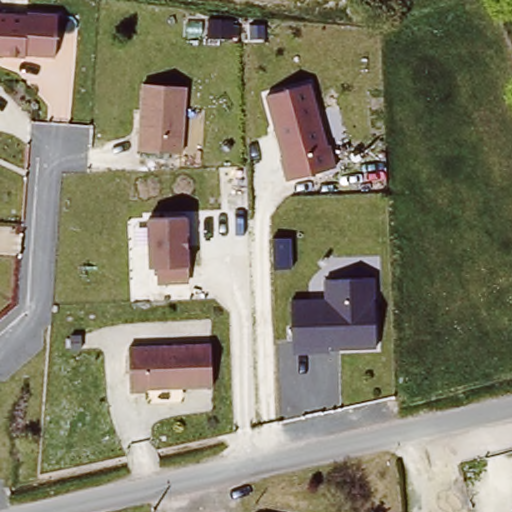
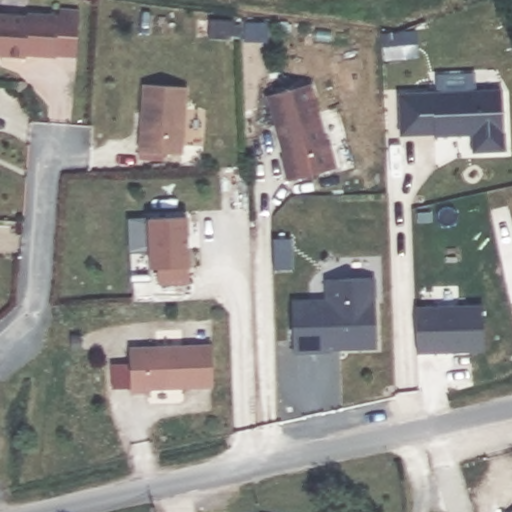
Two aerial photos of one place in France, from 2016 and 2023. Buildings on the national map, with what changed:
unchanged [(26,9),(57,12),(55,54),(27,53),(27,55),(0,53),(0,11),(25,13),(26,9)]
new [(409,49),(410,54),(382,55),(380,31),(425,29),(425,46),(409,49)]
unchanged [(185,85),(181,154),(137,149),(141,81),(185,85)]
unchanged [(313,83),(337,168),(282,182),(276,156),(280,155),(264,93),(313,83)]
new [(471,152),(470,135),(398,135),(395,93),(502,89),(505,150),(471,152)]
unchanged [(188,213),(190,280),(160,281),(158,265),(148,265),(147,216),(188,213)]
unchanged [(325,298),(325,278),(373,277),(376,347),(330,348),(330,351),(292,352),(290,299),(325,298)]
new [(484,351),(415,353),(412,307),(482,304),(484,351)]
unchanged [(210,342),(212,385),(149,386),(150,391),(130,391),(129,343),(210,342)]

